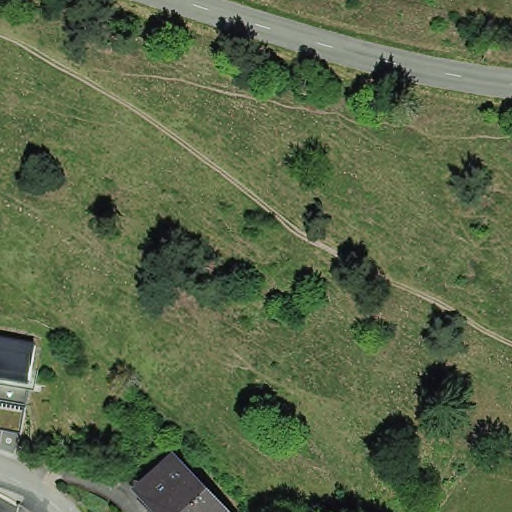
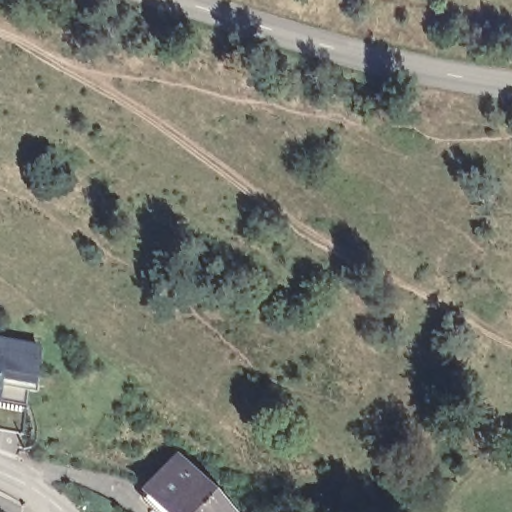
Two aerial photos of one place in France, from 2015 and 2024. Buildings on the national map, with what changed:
unchanged [(33,348),(23,409),(0,405),(0,342),(33,348)]
unchanged [(152,503),(187,471),(227,512),(159,512),(152,504),(152,503)]

